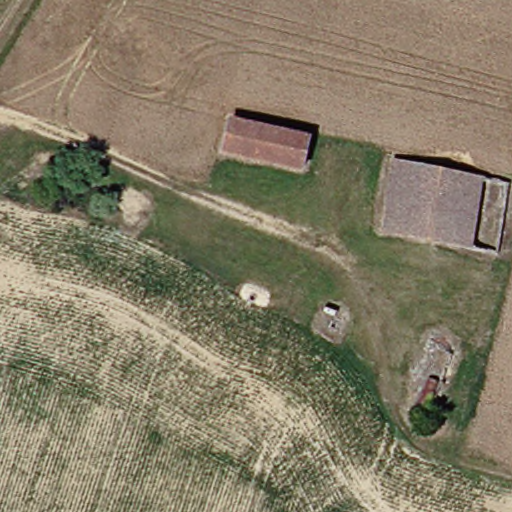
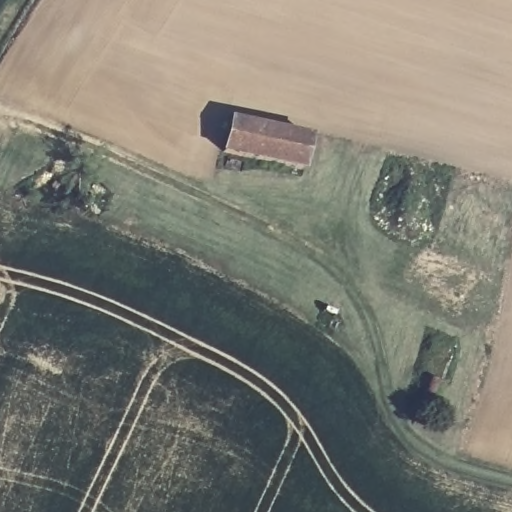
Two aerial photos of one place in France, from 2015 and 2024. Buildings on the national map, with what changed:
unchanged [(232,117),(312,131),(308,164),(227,151),(232,117)]
demolished [(380,230),(386,201),(395,202),(407,151),(493,169),(483,248),(380,230)]

